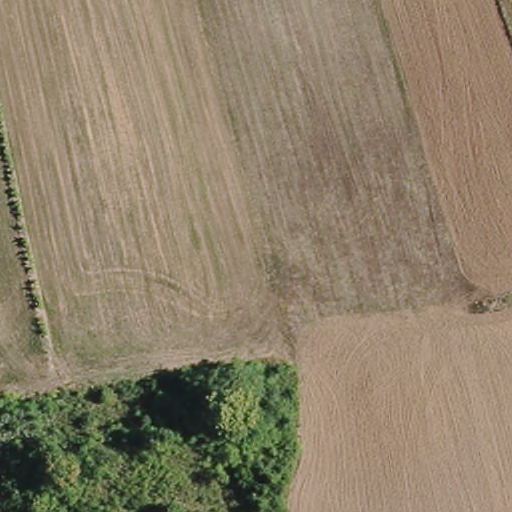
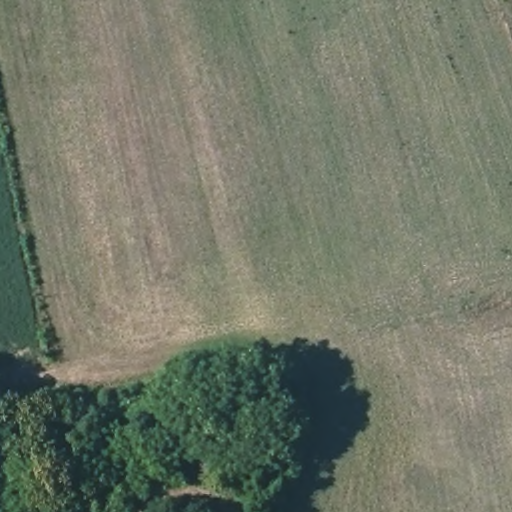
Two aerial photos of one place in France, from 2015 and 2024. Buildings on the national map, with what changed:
[]

